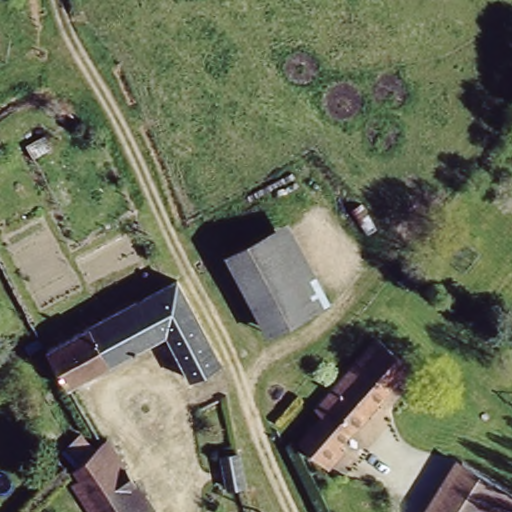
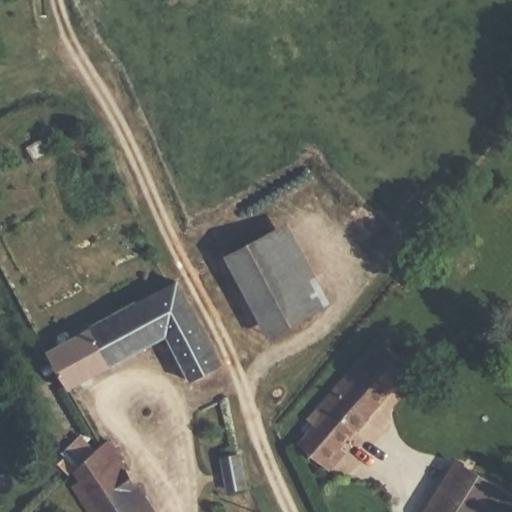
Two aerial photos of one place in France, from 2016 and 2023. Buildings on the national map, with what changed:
unchanged [(325,305),(272,333),(228,253),(280,225),(325,305)]
unchanged [(52,345),(179,283),(222,360),(190,375),(171,342),(81,386),(52,345)]
unchanged [(345,412),(331,399),(382,343),(421,378),(347,457),(326,432),(345,412)]
unchanged [(67,461),(108,416),(175,512),(103,512),(67,461)]
unchanged [(228,495),(213,458),(237,448),(249,485),(228,495)]
unchanged [(473,449),(507,481),(482,512),(453,512),(435,499),(473,449)]
unchanged [(511,512),(482,512),(507,481),(512,486),(512,511),(511,512)]
unchanged [(435,499),(453,512),(426,512),(435,499)]

